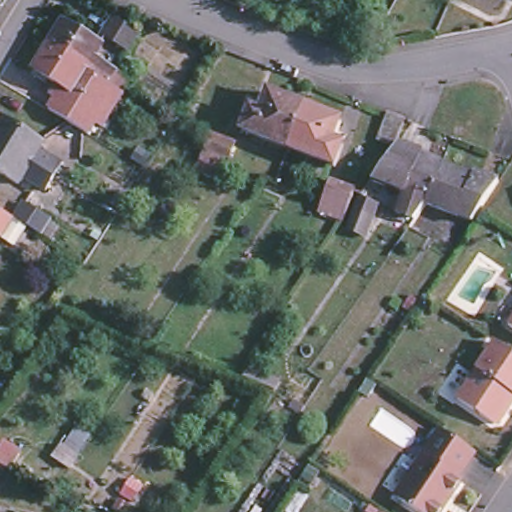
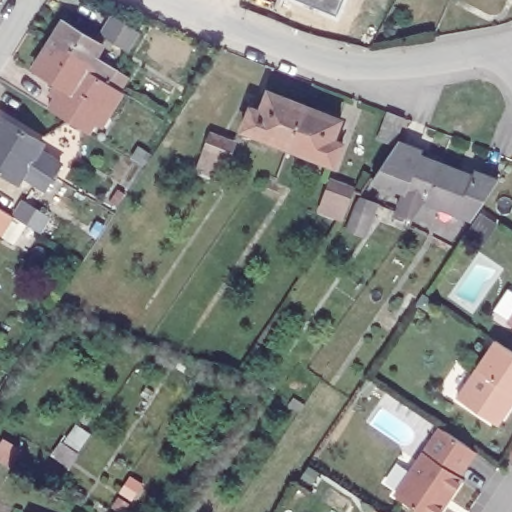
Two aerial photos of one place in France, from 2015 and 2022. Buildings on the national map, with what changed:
new [(335,18),(290,0),(340,0),(341,1),(335,18)]
unchanged [(137,41),(127,61),(100,45),(110,26),(137,41)]
unchanged [(86,145),(52,124),(60,113),(55,109),(61,99),(32,80),(47,56),(62,32),(101,55),(94,67),(126,88),(118,101),(122,103),(102,134),(96,129),(86,145)]
unchanged [(340,119),(332,140),(342,144),(333,166),(242,130),(250,108),(259,111),(268,91),(340,119)]
unchanged [(382,145),(391,119),(407,125),(399,151),(382,145)]
unchanged [(0,171),(0,130),(6,120),(45,145),(41,151),(64,166),(57,179),(50,191),(25,177),(21,184),(0,171)]
unchanged [(233,143),(227,160),(214,155),(204,151),(210,135),(233,143)]
unchanged [(414,223),(401,218),(405,206),(407,196),(379,185),(404,148),(425,156),(423,161),(432,165),(445,169),(445,170),(447,170),(449,171),(467,177),(477,182),(480,176),(503,185),(485,211),(477,224),(444,211),(430,205),(417,224),(414,223)]
unchanged [(323,198),(329,181),(353,190),(347,207),(323,198)]
unchanged [(0,245),(0,218),(16,229),(4,248),(0,245)]
unchanged [(507,320),(512,313),(512,324),(507,320)]
unchanged [(499,419),(492,420),(455,395),(495,336),(512,347),(512,398),(507,406),(499,419)]
unchanged [(433,512),(430,512),(394,488),(440,418),(475,442),(457,469),(461,471),(450,487),(443,497),(433,512)]
unchanged [(382,504),(395,512),(376,512),(382,504)]

